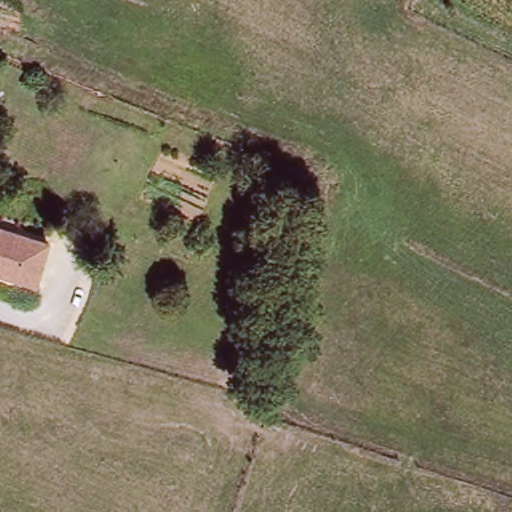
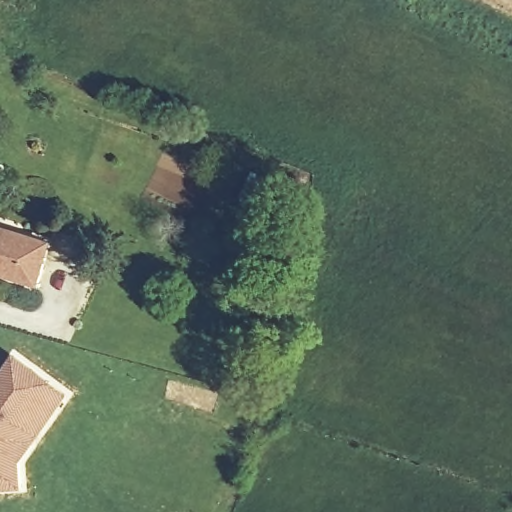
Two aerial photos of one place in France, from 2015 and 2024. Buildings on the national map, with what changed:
unchanged [(34,279),(0,270),(0,229),(45,240),(34,279)]
new [(70,395),(24,462),(26,488),(0,490),(0,373),(14,353),(70,395)]

